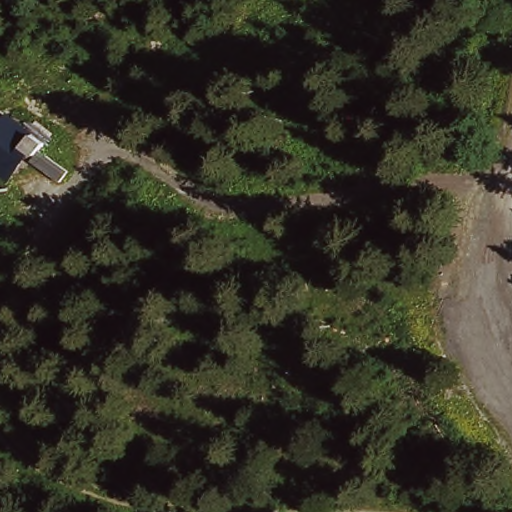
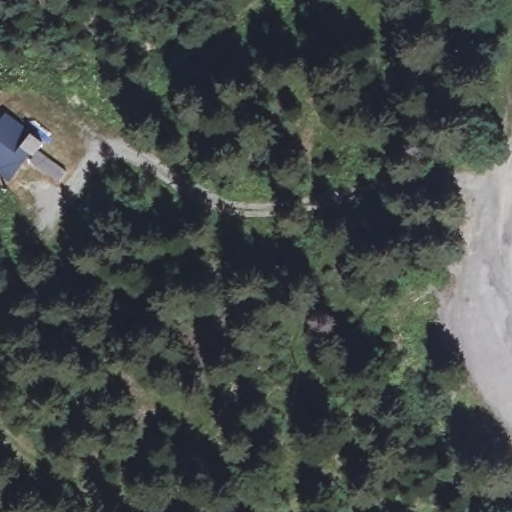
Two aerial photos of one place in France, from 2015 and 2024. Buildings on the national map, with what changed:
unchanged [(43,148),(65,165),(56,180),(26,161),(11,177),(0,169),(0,117),(9,106),(49,141),(43,148)]

